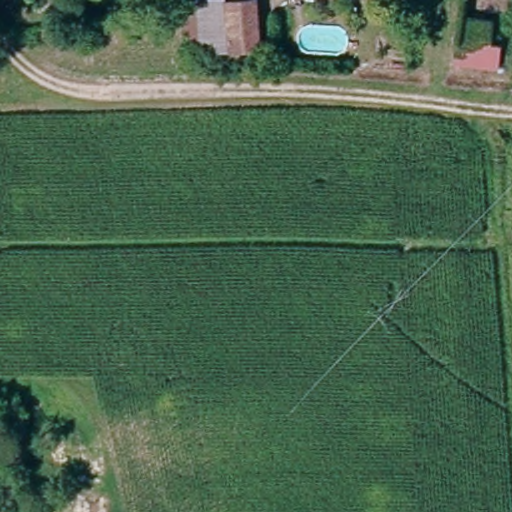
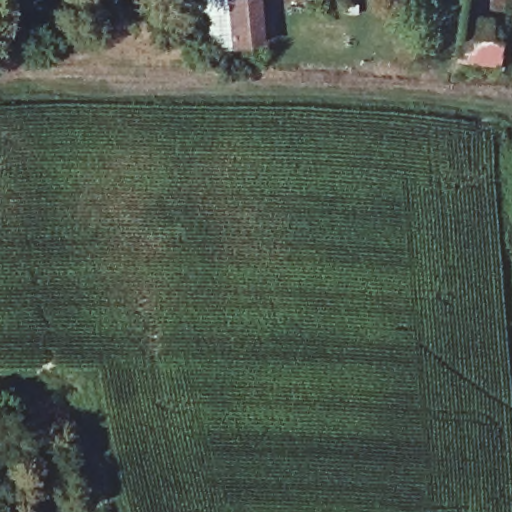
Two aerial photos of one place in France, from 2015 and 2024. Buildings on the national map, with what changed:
unchanged [(199,23),(198,0),(259,0),(263,45),(232,47),(205,48),(190,50),(187,25),(199,23)]
unchanged [(460,42),(464,41),(467,16),(495,19),(493,41),(503,44),(501,69),(457,61),(460,42)]

